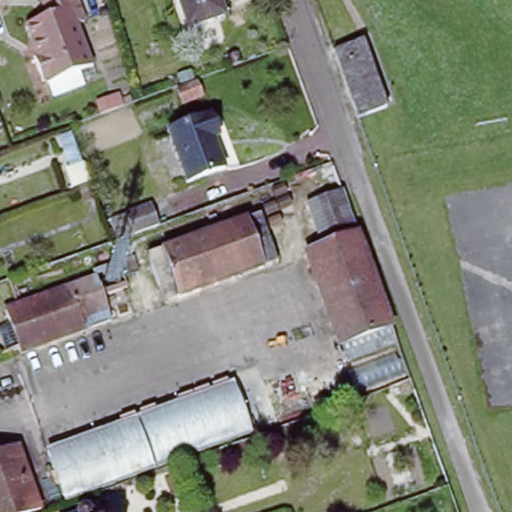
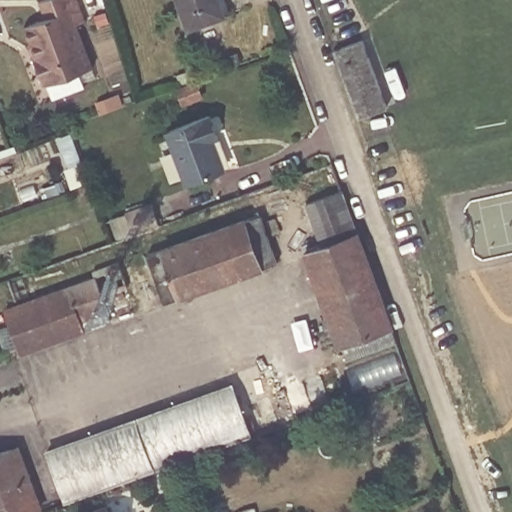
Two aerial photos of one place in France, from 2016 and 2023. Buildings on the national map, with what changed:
unchanged [(49,82),(47,84),(38,59),(42,57),(38,47),(29,22),(51,15),(46,0),(84,0),(90,17),(80,22),(95,66),(79,72),(85,87),(54,97),(49,82)]
unchanged [(189,23),(180,0),(220,0),(223,9),(189,23)]
unchanged [(363,42),(386,107),(358,117),(335,50),(363,42)]
unchanged [(205,79),(210,92),(187,101),(182,87),(205,79)]
unchanged [(220,137),(213,141),(225,170),(187,184),(169,132),(213,116),(220,137)]
unchanged [(360,230),(325,243),(309,199),(344,187),(360,230)]
unchanged [(125,234),(118,216),(145,207),(151,224),(125,234)]
unchanged [(265,210),(283,260),(166,300),(150,252),(265,210)]
unchanged [(401,343),(347,360),(341,341),(338,342),(305,250),(325,243),(360,230),(401,343)]
unchanged [(4,326),(18,320),(12,305),(98,272),(95,265),(120,256),(129,282),(105,292),(115,318),(28,351),(27,346),(12,351),(4,326)]
unchanged [(237,377),(256,430),(75,496),(56,443),(237,377)]
unchanged [(43,503),(19,512),(0,512),(0,451),(21,443),(43,503)]
unchanged [(106,512),(94,512),(105,508),(106,512)]

